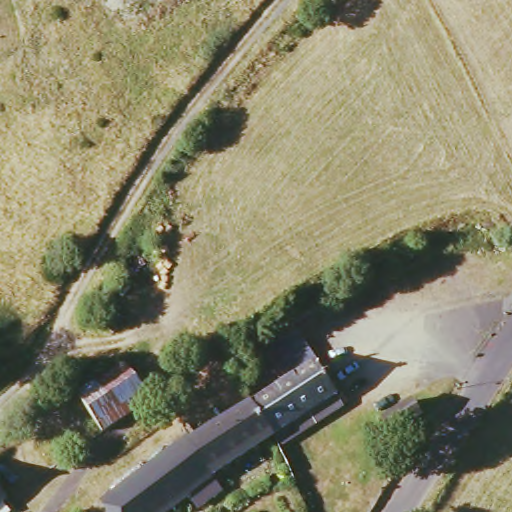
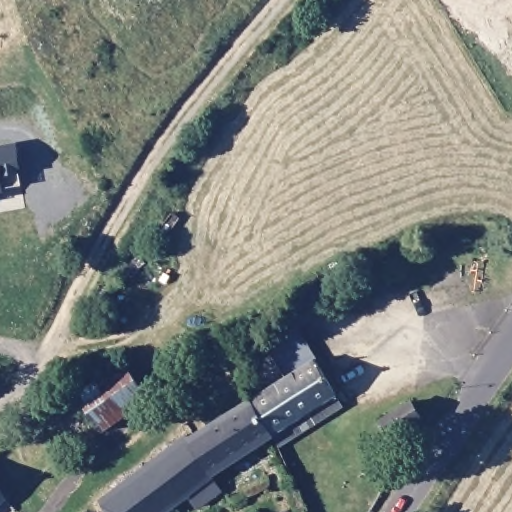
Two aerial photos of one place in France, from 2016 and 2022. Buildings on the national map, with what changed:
new [(0,195),(0,148),(13,146),(18,168),(21,191),(0,195)]
unchanged [(270,392),(247,358),(276,338),(264,325),(316,301),(323,305),(294,326),(351,411),(281,455),(276,444),(253,404),(257,402),(270,392)]
unchanged [(151,402),(104,438),(74,397),(120,361),(151,402)]
unchanged [(420,413),(386,434),(376,417),(411,397),(420,413)]
unchanged [(237,470),(213,430),(253,404),(276,444),(237,470)]
unchanged [(219,481),(233,502),(218,512),(201,512),(195,502),(180,512),(105,512),(101,505),(189,442),(191,445),(213,430),(237,470),(219,481)]
unchanged [(13,507),(6,512),(0,512),(0,490),(13,507)]

